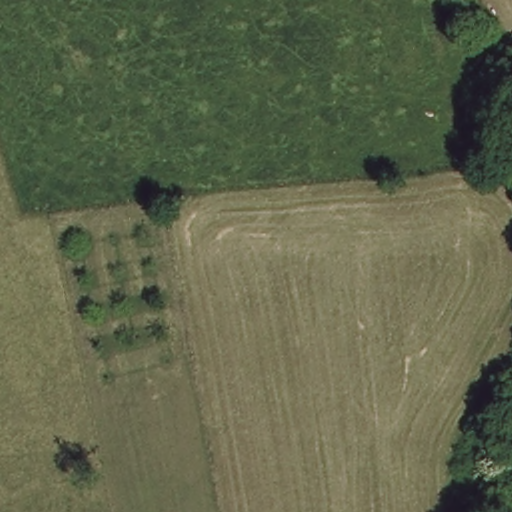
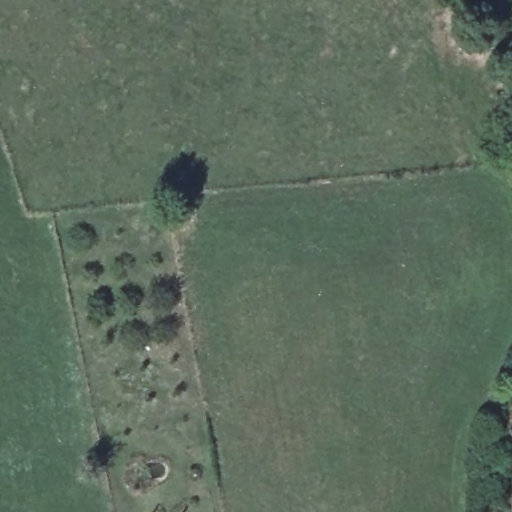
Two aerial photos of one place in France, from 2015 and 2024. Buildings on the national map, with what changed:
[]

